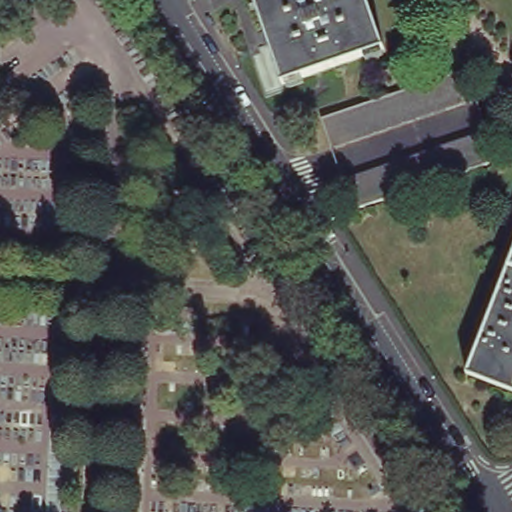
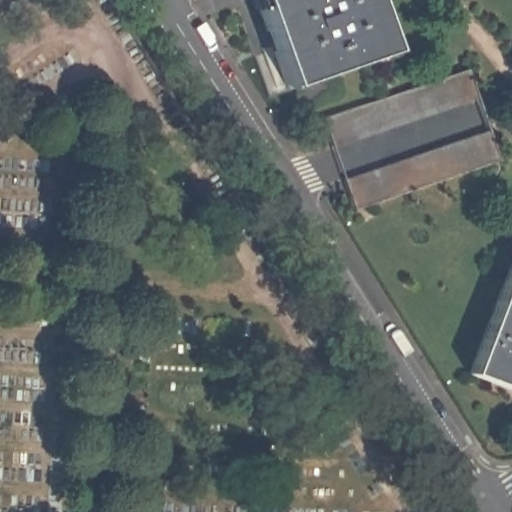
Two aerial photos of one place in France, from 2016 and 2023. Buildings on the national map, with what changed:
unchanged [(367,0),(384,50),(283,85),(253,0),(367,0)]
unchanged [(321,114),(467,64),(477,93),(332,144),(321,114)]
unchanged [(347,176),(493,126),(502,153),(357,204),(347,176)]
unchanged [(512,256),(512,391),(467,373),(512,256)]

